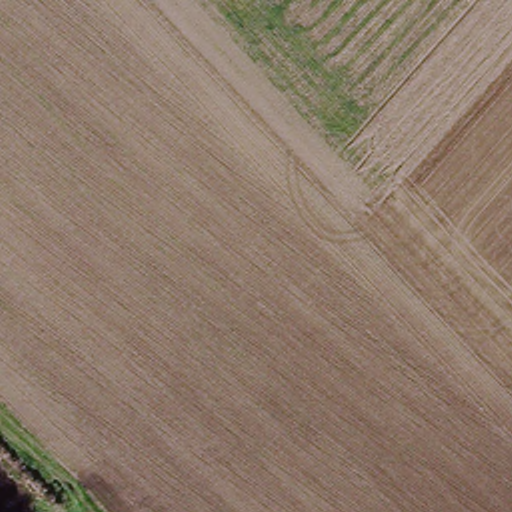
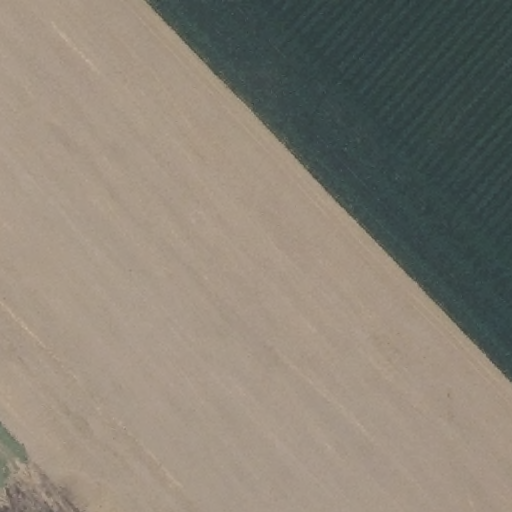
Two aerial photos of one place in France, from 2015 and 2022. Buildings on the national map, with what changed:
[]

